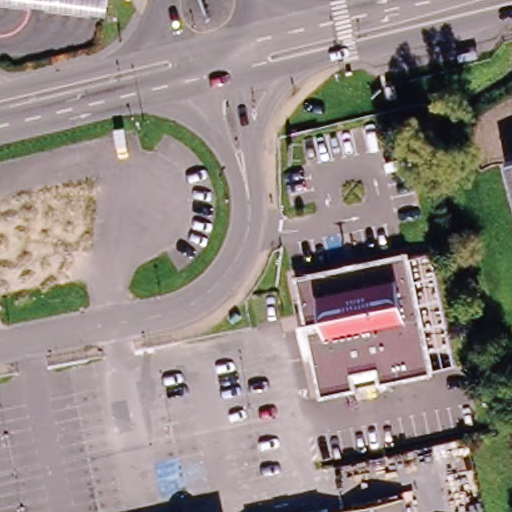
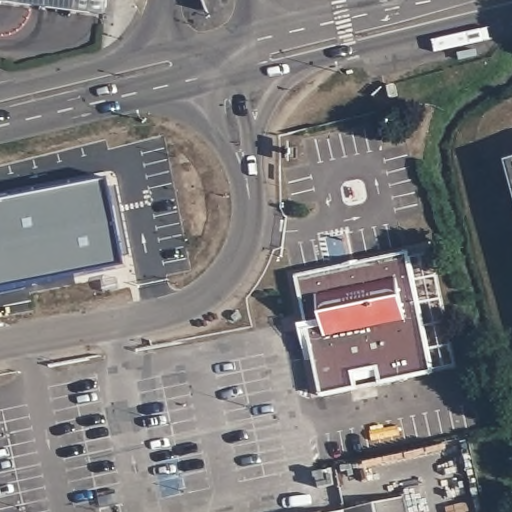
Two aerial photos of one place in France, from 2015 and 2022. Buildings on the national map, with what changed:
unchanged [(106,18),(0,5),(0,0),(108,0),(106,18)]
unchanged [(512,163),(512,184),(507,164),(512,163)]
demolished [(102,178),(92,246),(36,241),(34,260),(0,258),(0,204),(102,178)]
new [(109,178),(127,267),(0,292),(0,200),(109,178)]
unchanged [(406,248),(433,368),(323,393),(296,274),(406,248)]
unchanged [(400,512),(328,512),(397,497),(400,512)]

